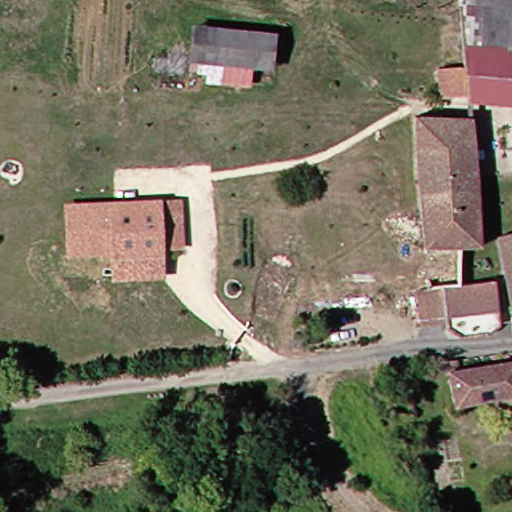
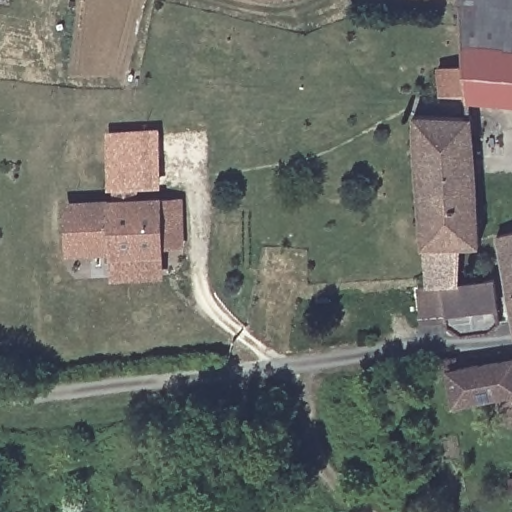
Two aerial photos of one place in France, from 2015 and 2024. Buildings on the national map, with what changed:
unchanged [(473,0),(512,0),(512,18),(472,13),(473,0)]
unchanged [(450,74),(467,74),(472,13),(512,18),(512,109),(448,103),(450,74)]
demolished [(277,29),(277,71),(274,89),(224,84),(194,82),(194,64),(196,25),(277,29)]
unchanged [(470,118),(480,249),(458,252),(461,284),(430,287),(425,151),(424,119),(470,118)]
new [(107,131),(160,129),(162,188),(107,189),(107,131)]
unchanged [(185,198),(186,248),(165,249),(166,278),(114,279),(111,254),(68,255),(65,201),(185,198)]
unchanged [(503,235),(512,232),(512,290),(510,279),(503,235)]
unchanged [(498,337),(445,347),(445,343),(442,295),(431,298),(430,289),(430,287),(461,284),(493,281),(498,337)]
unchanged [(473,410),(463,371),(453,371),(452,366),(451,362),(470,360),(471,367),(512,361),(512,424),(507,403),(473,410)]

